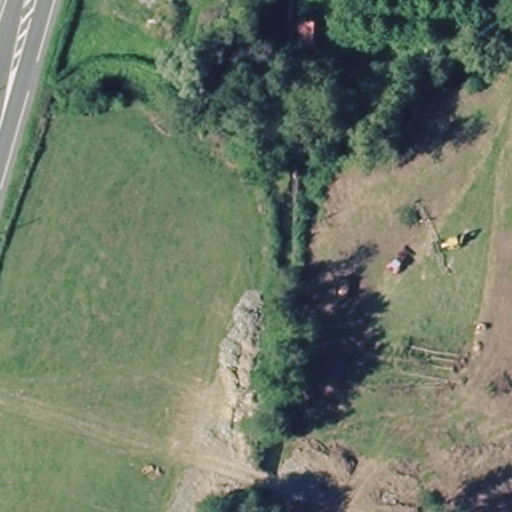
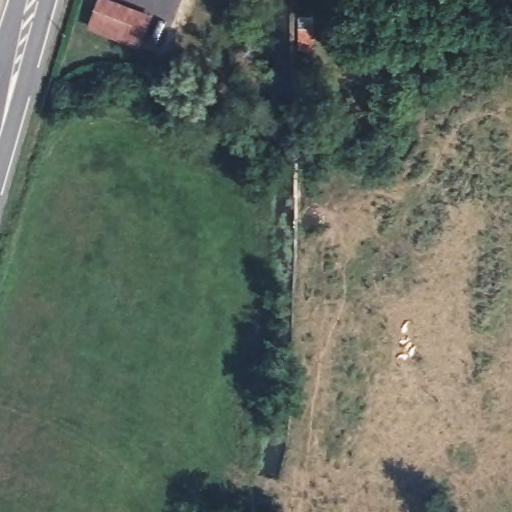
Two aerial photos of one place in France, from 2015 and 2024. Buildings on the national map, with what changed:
new [(137,48),(85,28),(95,0),(113,0),(150,14),(137,48)]

